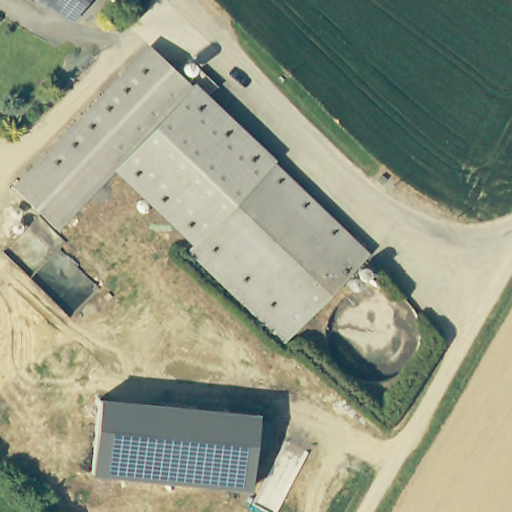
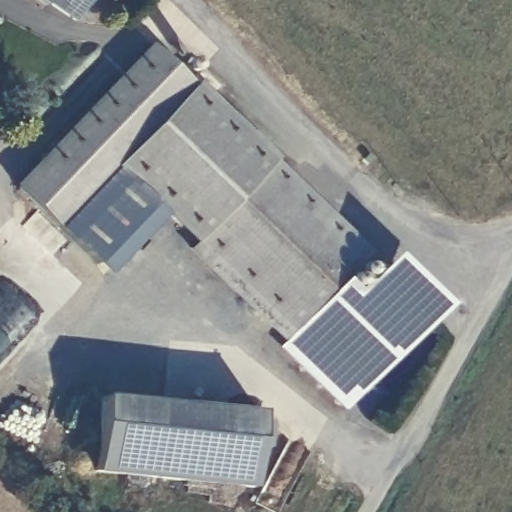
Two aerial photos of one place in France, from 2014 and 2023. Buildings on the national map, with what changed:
unchanged [(71,17),(48,2),(44,7),(33,0),(83,0),(71,17)]
unchanged [(15,195),(151,54),(190,91),(114,169),(52,234),(15,195)]
demolished [(0,90),(6,94),(0,100),(0,90)]
unchanged [(369,260),(294,339),(114,169),(190,91),(369,260)]
new [(114,169),(163,216),(107,275),(57,229),(114,169)]
new [(369,260),(391,254),(444,307),(342,411),(279,350),(294,339),(369,260)]
unchanged [(258,412),(250,488),(90,473),(100,396),(258,412)]

